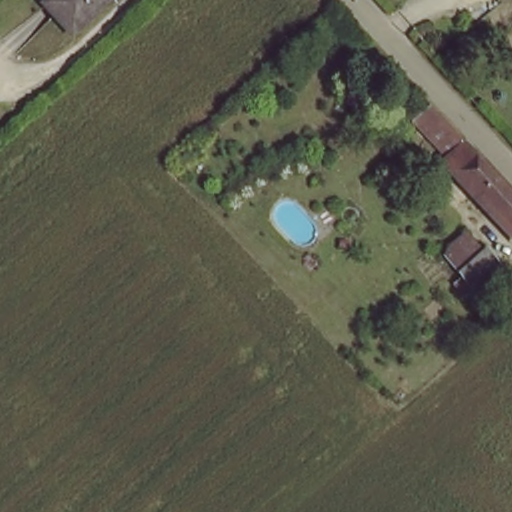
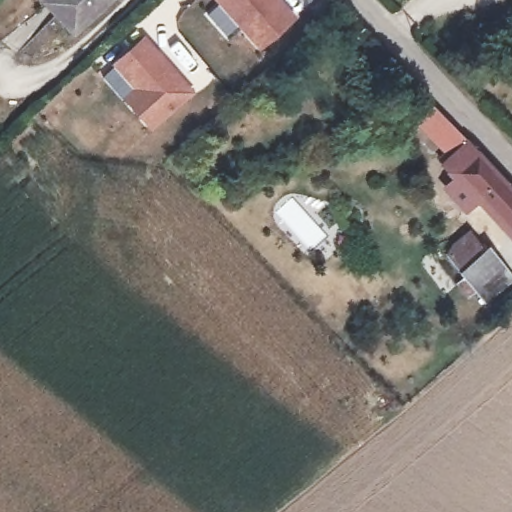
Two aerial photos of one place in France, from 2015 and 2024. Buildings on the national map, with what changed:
unchanged [(48,0),(110,0),(77,29),(48,0)]
new [(215,0),(284,0),(298,15),(260,50),(215,0)]
new [(152,130),(123,98),(135,87),(111,64),(146,35),(195,93),(152,130)]
unchanged [(453,161),(441,151),(450,141),(430,122),(419,111),(433,98),(444,109),(512,181),(512,218),(456,159),(453,161)]
unchanged [(448,266),(455,259),(452,255),(479,230),(497,251),(471,275),(464,281),(448,266)]

